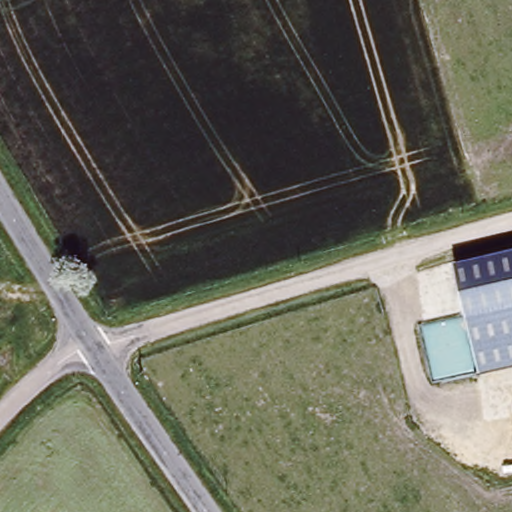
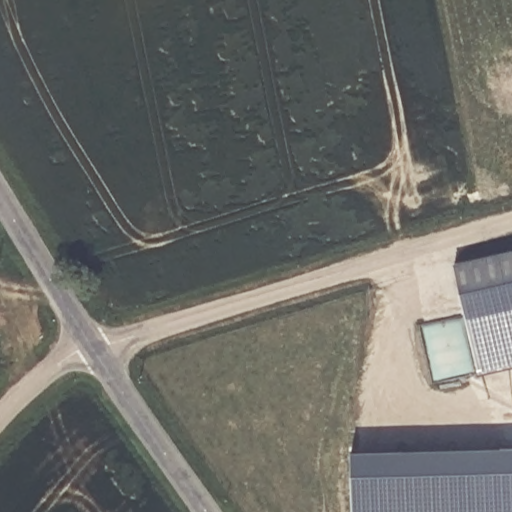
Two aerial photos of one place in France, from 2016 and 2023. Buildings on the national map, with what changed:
unchanged [(452,260),(512,247),(512,363),(477,370),(452,260)]
new [(512,445),(512,512),(349,512),(347,448),(512,445)]

